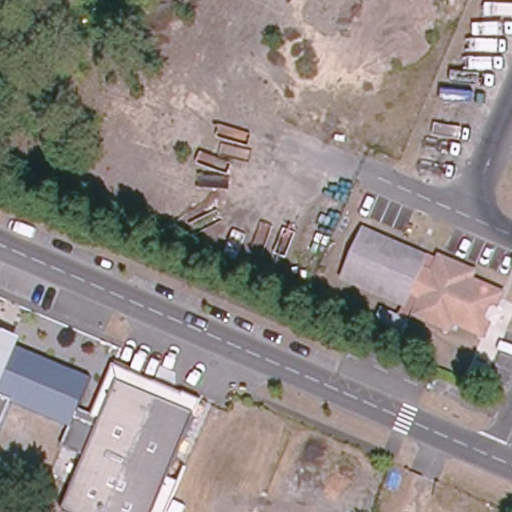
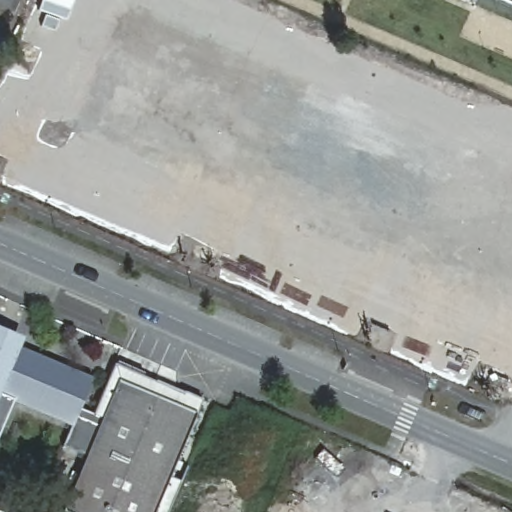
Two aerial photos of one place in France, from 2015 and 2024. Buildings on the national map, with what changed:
new [(503,0),(512,0),(512,4),(503,0)]
demolished [(504,287),(497,302),(501,311),(492,315),(485,330),(454,317),(451,324),(415,309),(423,291),(412,287),(409,292),(394,286),(391,293),(356,278),(359,271),(344,265),(358,231),(373,237),(376,230),(411,244),(408,252),(424,258),(421,264),(433,269),(441,251),(476,266),(473,274),(504,287)]
unchanged [(0,395),(0,339),(92,377),(79,408),(93,413),(115,361),(155,377),(185,390),(203,398),(155,512),(67,512),(62,510),(85,455),(62,445),(71,425),(12,400),(0,395)]
unchanged [(0,428),(0,395),(12,400),(0,428)]

